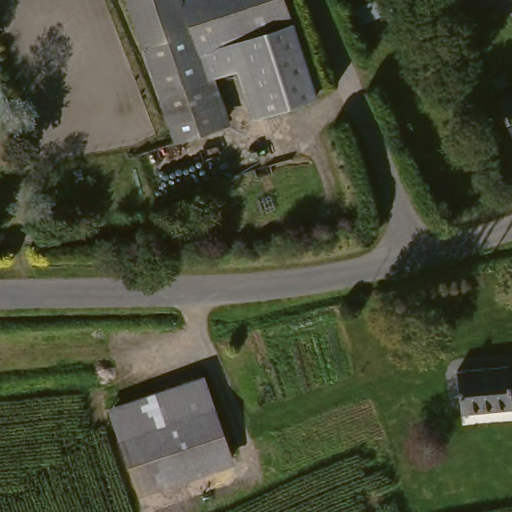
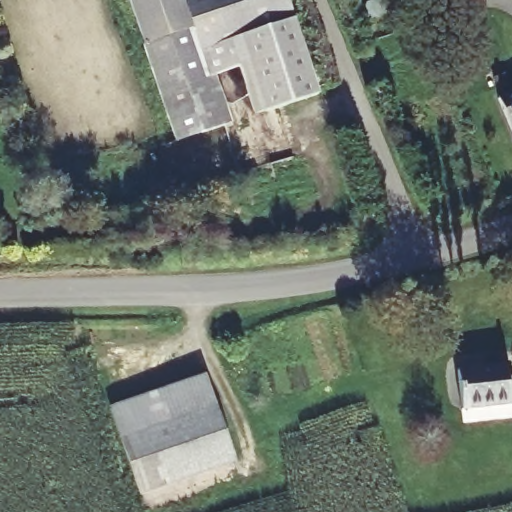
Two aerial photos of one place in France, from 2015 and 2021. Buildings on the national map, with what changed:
unchanged [(149,43),(135,48),(119,0),(287,0),(318,95),(263,112),(245,57),(212,67),(230,122),(183,137),(149,43)]
unchanged [(512,93),(512,137),(495,100),(512,93)]
unchanged [(503,360),(507,396),(508,398),(456,405),(450,366),(503,360)]
unchanged [(103,402),(203,371),(219,416),(120,449),(103,402)]
unchanged [(219,416),(236,464),(138,496),(120,449),(219,416)]

